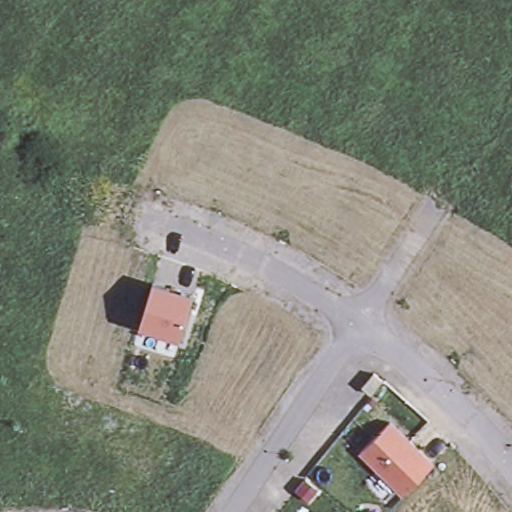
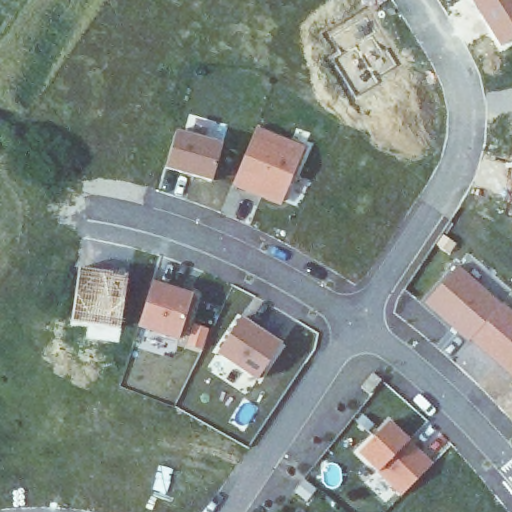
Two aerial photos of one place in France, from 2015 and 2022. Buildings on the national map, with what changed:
new [(474,0),(512,0),(512,38),(501,45),(474,0)]
new [(367,13),(381,34),(373,39),(381,55),(388,51),(396,66),(374,78),(377,85),(352,99),(331,58),(337,55),(325,35),(367,13)]
new [(280,206),(232,185),(256,127),(304,146),(280,206)]
new [(222,141),(212,179),(167,165),(177,129),(222,141)]
new [(512,311),(512,376),(425,300),(457,264),(512,311)]
new [(130,273),(121,328),(73,322),(80,268),(130,273)]
unchanged [(181,340),(139,329),(151,282),(192,294),(181,340)]
new [(284,345),(258,383),(215,354),(241,316),(284,345)]
unchanged [(370,373),(358,387),(350,380),(361,366),(370,373)]
unchanged [(402,496),(359,455),(390,421),(433,463),(402,496)]

